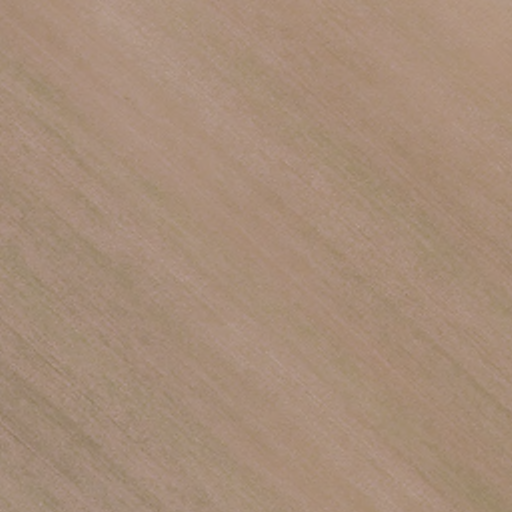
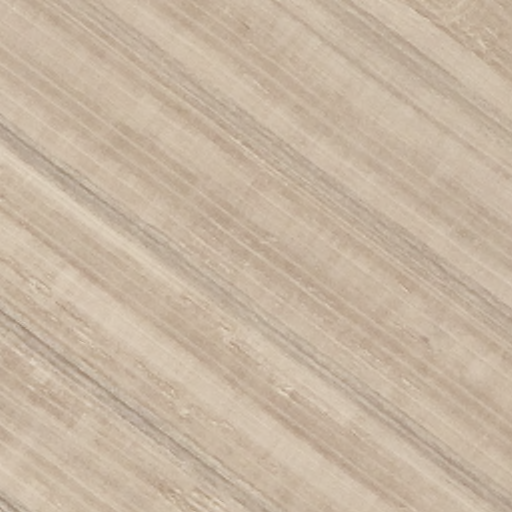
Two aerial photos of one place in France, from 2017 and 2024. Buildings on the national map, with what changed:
[]

